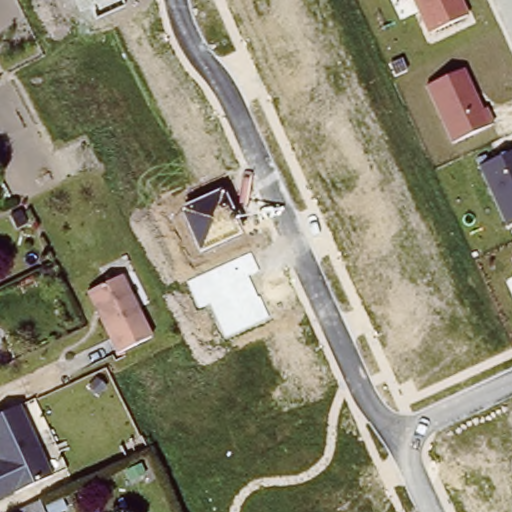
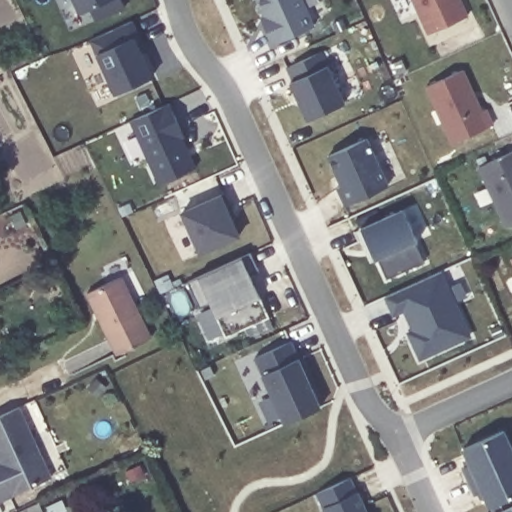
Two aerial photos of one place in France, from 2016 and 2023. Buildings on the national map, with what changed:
unchanged [(96,19),(90,8),(83,12),(77,0),(122,0),(124,6),(96,19)]
new [(273,44),(266,29),(268,27),(263,17),(265,16),(258,0),(302,0),(314,26),(273,44)]
unchanged [(429,32),(413,0),(462,0),(468,12),(429,32)]
new [(138,36),(146,51),(141,53),(151,77),(115,93),(90,39),(131,20),(138,36)]
new [(306,118),(291,82),(286,69),(322,52),(326,66),(344,102),(306,118)]
unchanged [(490,122),(454,141),(426,87),(464,66),(490,122)]
new [(169,102),(184,135),(181,136),(196,166),(158,182),(130,120),(169,102)]
new [(366,137),(389,185),(346,205),(338,187),(343,185),(329,155),(366,137)]
unchanged [(506,226),(477,168),(512,150),(512,223),(506,226)]
unchanged [(221,191),(241,236),(201,254),(181,210),(221,191)]
new [(387,277),(375,258),(371,262),(356,231),(360,227),(401,210),(414,241),(423,261),(387,277)]
unchanged [(226,337),(216,316),(209,302),(200,306),(189,280),(198,276),(242,258),(251,254),(259,271),(248,273),(259,296),(269,315),(226,337)]
new [(441,270),(471,336),(422,358),(410,332),(415,330),(405,309),(394,313),(386,295),(441,270)]
unchanged [(124,272),(141,303),(142,303),(156,332),(123,348),(93,287),(124,272)]
new [(291,341),(307,375),(305,377),(309,388),(314,389),(321,406),(284,423),(254,357),(291,341)]
unchanged [(0,365),(0,361),(1,365),(0,365)]
unchanged [(0,501),(0,415),(19,407),(53,475),(0,501)]
new [(512,448),(512,495),(488,506),(482,491),(473,494),(462,468),(469,465),(463,449),(504,431),(512,448)]
new [(349,477),(356,492),(357,492),(366,512),(326,512),(317,492),(349,477)]
unchanged [(44,512),(16,512),(39,501),(44,512)]
new [(512,506),(512,512),(499,512),(512,506)]

